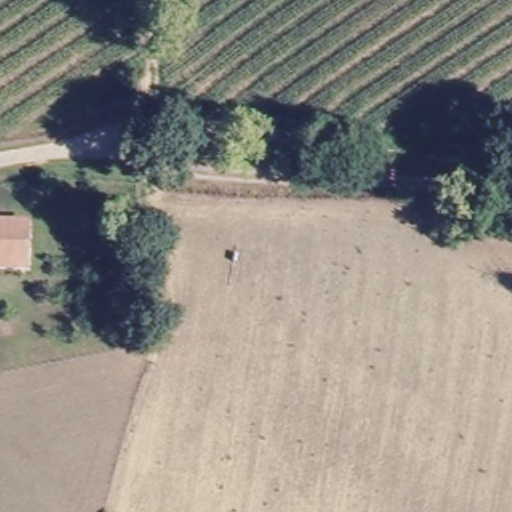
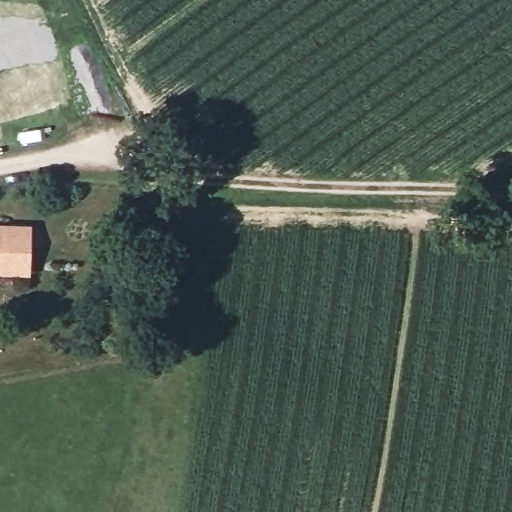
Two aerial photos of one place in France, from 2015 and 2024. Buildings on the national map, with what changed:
unchanged [(0,277),(0,231),(2,232),(22,232),(21,258),(21,277),(0,277)]

